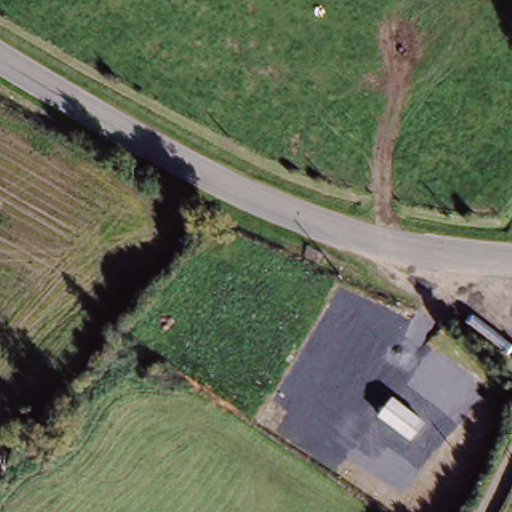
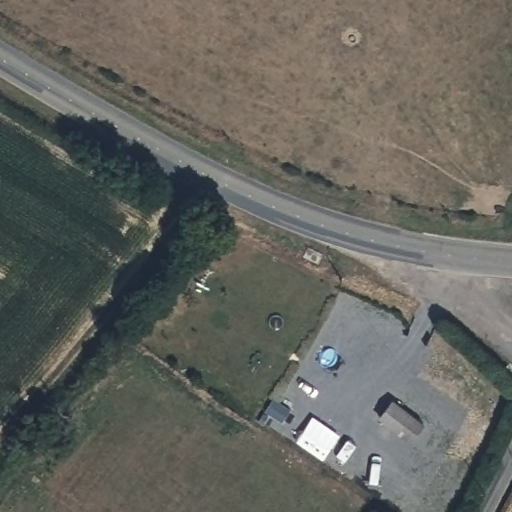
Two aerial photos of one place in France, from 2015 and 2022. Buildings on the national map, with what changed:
unchanged [(394,405),(426,424),(414,443),(382,424),(394,405)]

